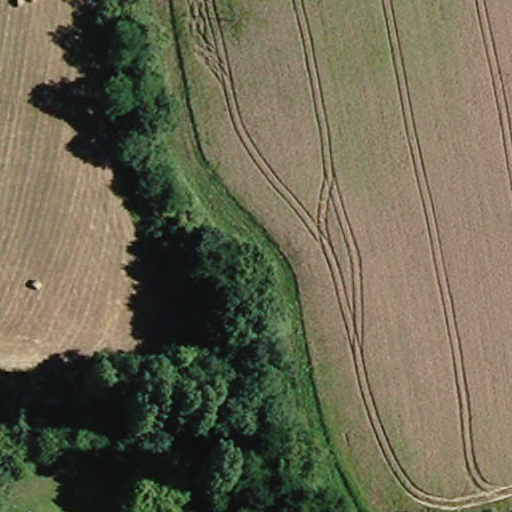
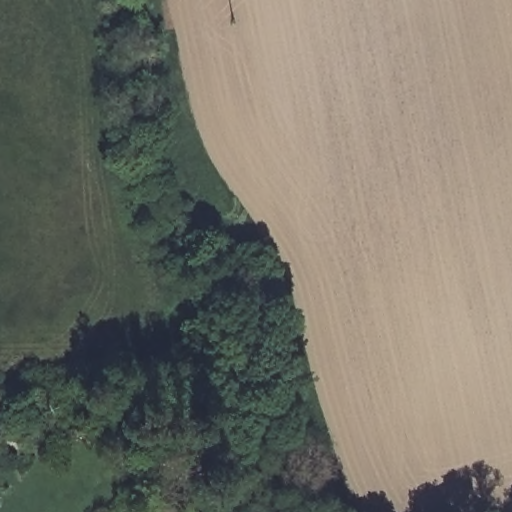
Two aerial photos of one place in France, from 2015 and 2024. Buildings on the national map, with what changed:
[]

